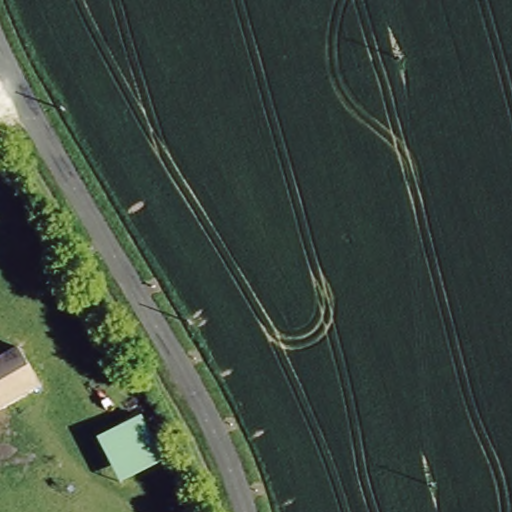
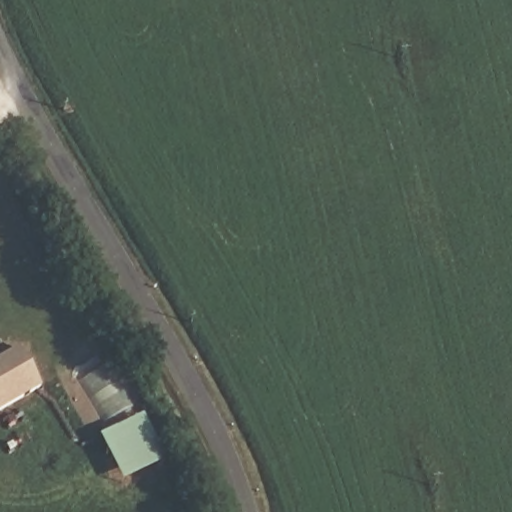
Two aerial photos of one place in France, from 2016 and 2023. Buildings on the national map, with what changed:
unchanged [(39,383),(0,405),(0,354),(17,345),(39,383)]
unchanged [(98,438),(141,415),(165,461),(123,484),(98,438)]

